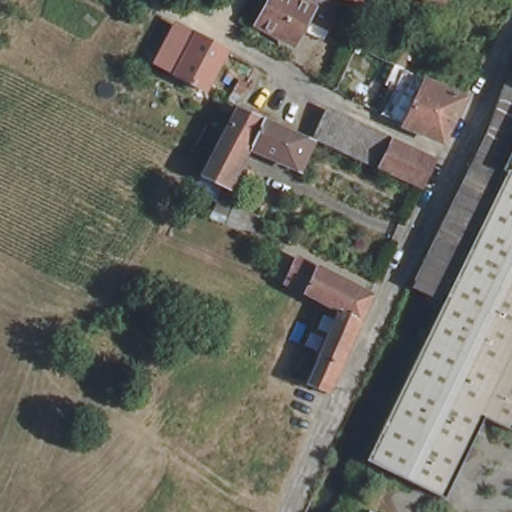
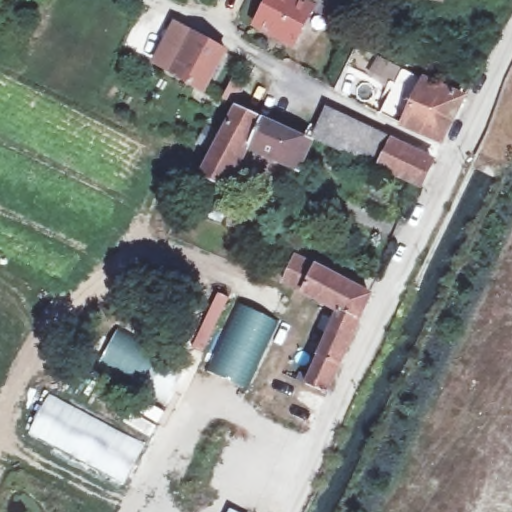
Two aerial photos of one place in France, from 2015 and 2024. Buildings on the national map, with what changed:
unchanged [(310,8),(291,42),(256,24),(268,0),(338,0),(334,20),(310,8)]
unchanged [(193,37),(173,74),(152,64),(141,57),(146,45),(160,51),(173,26),(193,37)]
unchanged [(223,52),(203,89),(173,74),(193,37),(194,35),(223,52)]
unchanged [(408,42),(402,55),(389,51),(396,38),(408,42)]
unchanged [(400,115),(380,104),(401,62),(421,71),(400,115)]
demolished [(512,174),(512,433),(487,422),(446,499),(369,462),(419,363),(447,305),(411,290),(416,280),(487,135),(505,82),(512,66),(512,153),(504,170),(512,174)]
unchanged [(463,89),(441,131),(400,115),(421,71),(463,89)]
unchanged [(310,142),(297,171),(248,147),(228,192),(203,182),(214,161),(241,112),(310,142)]
unchanged [(350,159),(351,156),(323,144),(336,115),(398,146),(383,174),(350,159)]
unchanged [(437,165),(424,192),(383,174),(398,146),(437,165)]
unchanged [(254,230),(226,222),(238,198),(254,202),(250,214),(258,217),(254,230)]
unchanged [(358,319),(336,312),(304,295),(281,283),(294,257),(316,268),(369,295),(358,319)]
unchanged [(358,319),(325,391),(304,384),(336,312),(358,319)]
new [(118,325),(186,364),(166,407),(96,367),(118,325)]
new [(49,393),(144,443),(123,482),(28,432),(49,393)]

